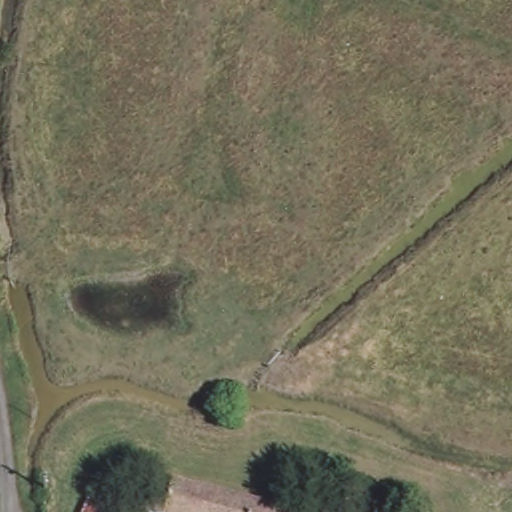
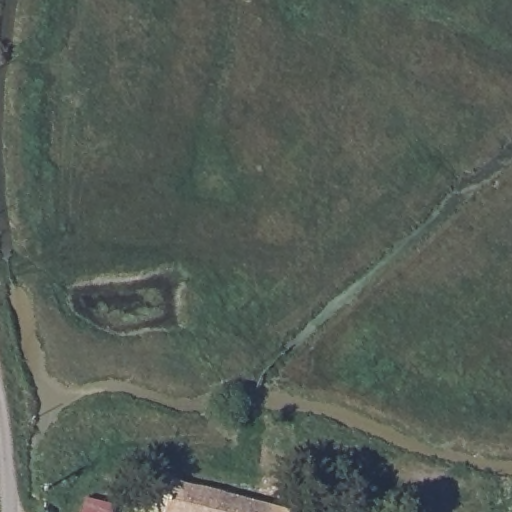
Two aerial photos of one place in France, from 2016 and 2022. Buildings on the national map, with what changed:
unchanged [(300,512),(145,512),(152,475),(300,511),(300,512)]
unchanged [(130,511),(130,512),(84,512),(93,495),(130,511)]

